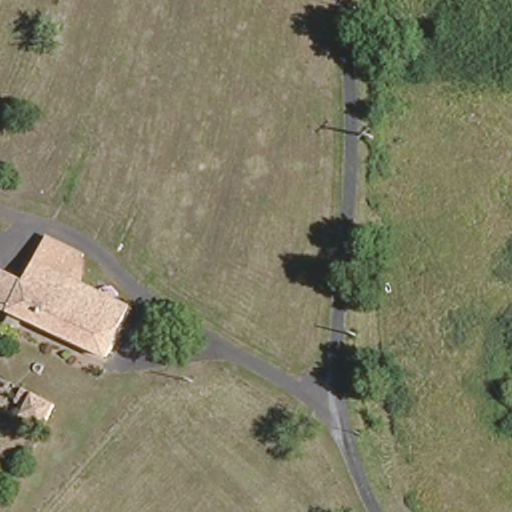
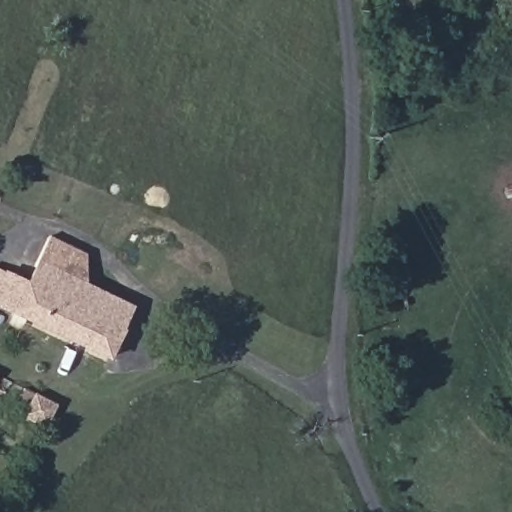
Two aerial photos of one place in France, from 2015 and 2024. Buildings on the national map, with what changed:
unchanged [(39,260),(52,238),(87,256),(75,278),(39,260)]
unchanged [(132,308),(109,356),(0,300),(0,267),(27,281),(39,260),(75,278),(132,308)]
unchanged [(0,388),(0,378),(5,380),(0,388)]
unchanged [(55,432),(32,419),(36,412),(24,404),(31,392),(66,411),(55,432)]

